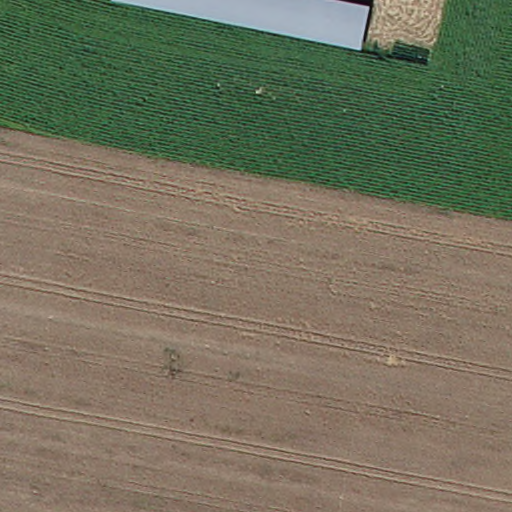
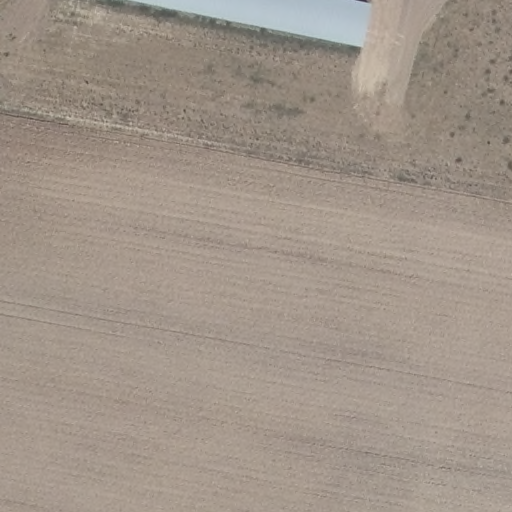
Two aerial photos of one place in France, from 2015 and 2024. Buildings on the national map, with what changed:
unchanged [(141,0),(357,0),(351,35),(141,0)]

